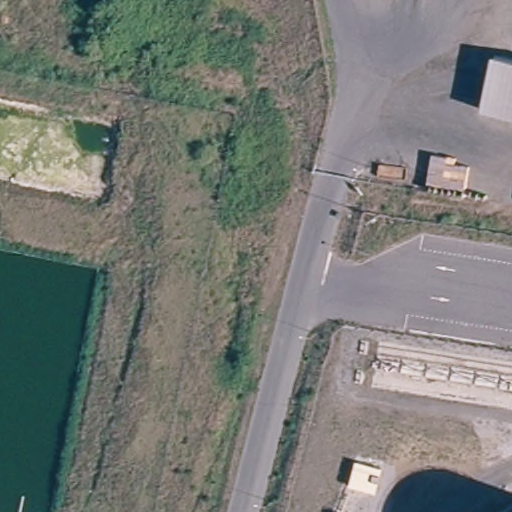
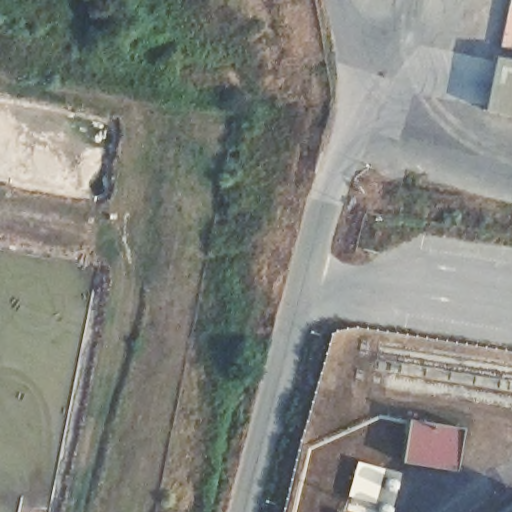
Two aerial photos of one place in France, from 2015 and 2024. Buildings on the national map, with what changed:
unchanged [(481,58),(512,64),(512,117),(472,110),(481,58)]
new [(408,416),(463,427),(454,471),(399,460),(408,416)]
unchanged [(384,469),(378,493),(351,486),(357,461),(384,469)]

